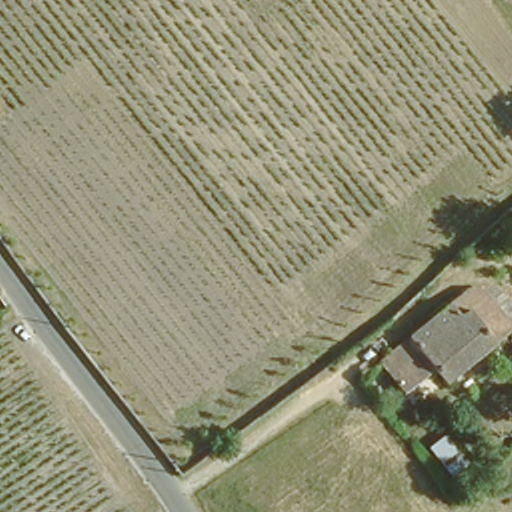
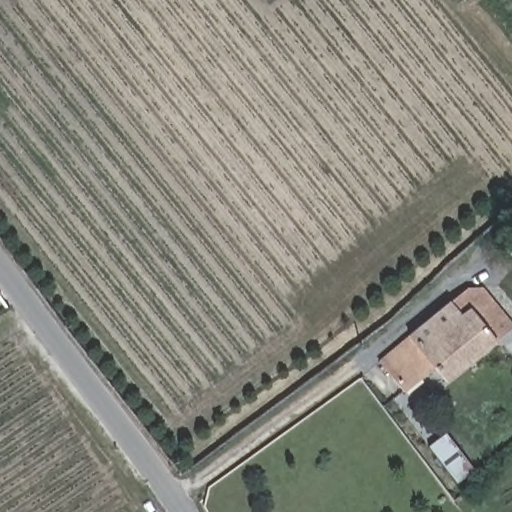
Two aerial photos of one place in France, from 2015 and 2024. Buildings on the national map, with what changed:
unchanged [(480,293),(494,309),(497,307),(512,327),(447,377),(434,362),(399,389),(376,358),(463,291),(480,293)]
unchanged [(476,471),(459,485),(424,446),(447,430),(476,471)]

